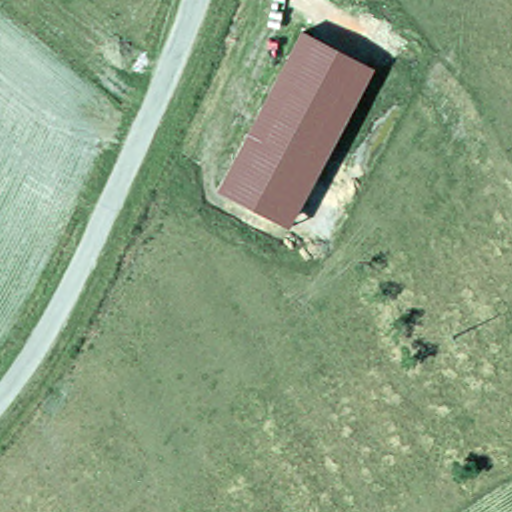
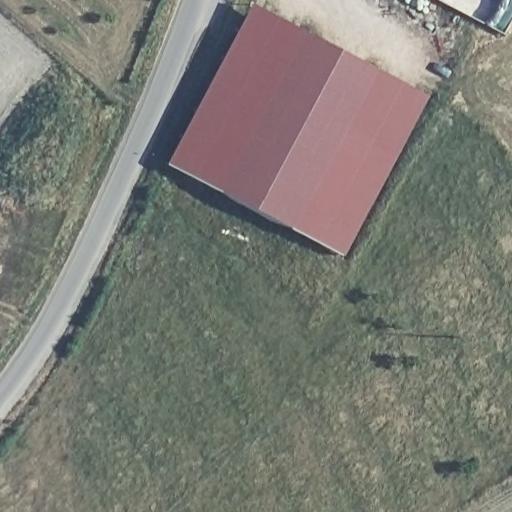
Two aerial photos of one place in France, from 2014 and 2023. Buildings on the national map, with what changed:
new [(167,161),(251,3),(303,31),(219,190),(167,161)]
unchanged [(303,31),(375,69),(290,228),(219,190),(303,31)]
new [(375,69),(426,96),(342,255),(290,228),(375,69)]

